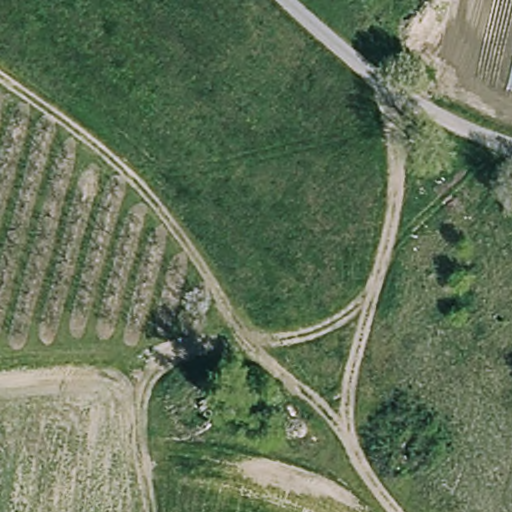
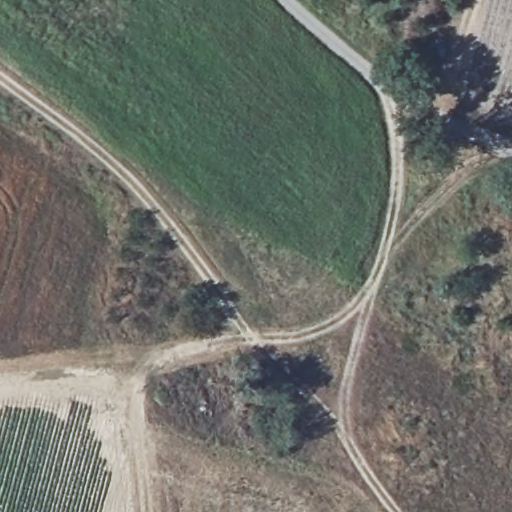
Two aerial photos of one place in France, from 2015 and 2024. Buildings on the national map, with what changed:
unchanged [(273,407),(253,421),(235,394),(254,380),(273,407)]

